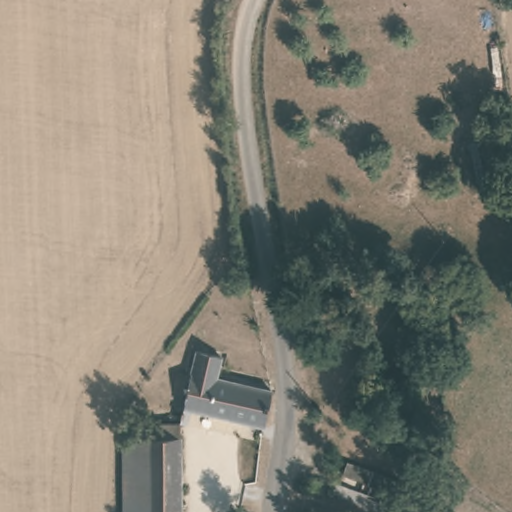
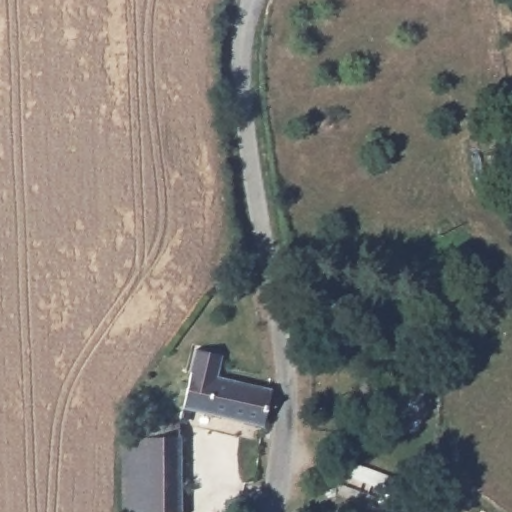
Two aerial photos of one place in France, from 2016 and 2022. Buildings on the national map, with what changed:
unchanged [(273,433),(185,410),(197,351),(220,357),(215,384),(280,399),(273,433)]
unchanged [(179,512),(122,512),(121,441),(142,440),(141,429),(175,429),(179,512)]

